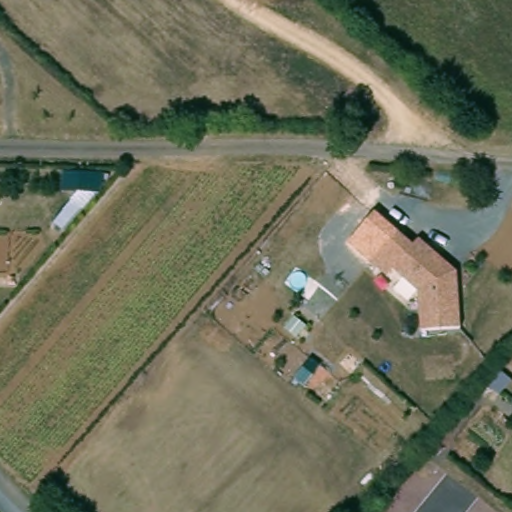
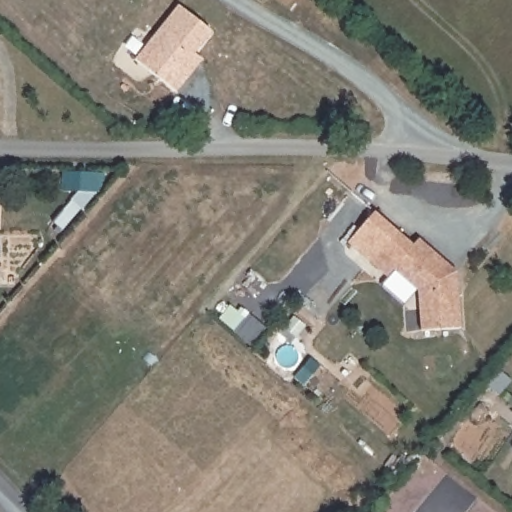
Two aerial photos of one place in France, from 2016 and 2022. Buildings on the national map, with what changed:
new [(179,7),(212,34),(195,55),(203,62),(177,94),(136,61),(179,7)]
unchanged [(416,242),(422,237),(459,270),(462,326),(425,329),(422,292),(401,271),(392,277),(374,260),(402,231),(416,242)]

